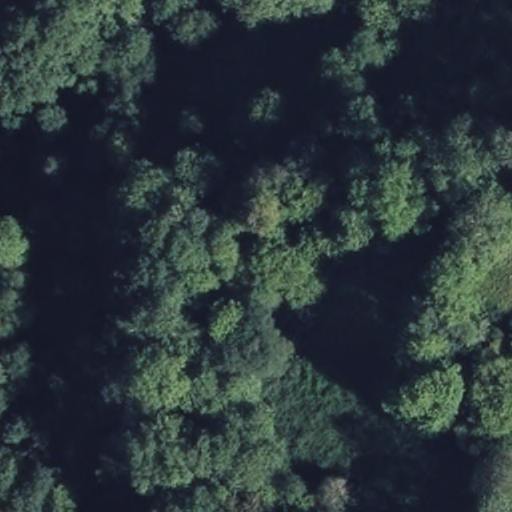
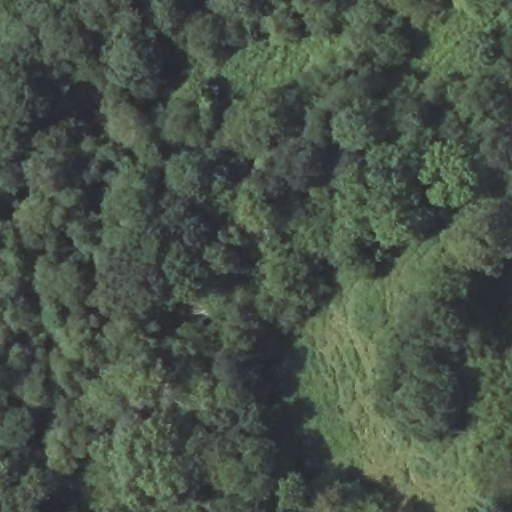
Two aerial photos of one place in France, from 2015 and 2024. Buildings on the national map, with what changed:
unchanged [(473,386),(458,389),(449,357),(486,349),(493,378),(473,386)]

